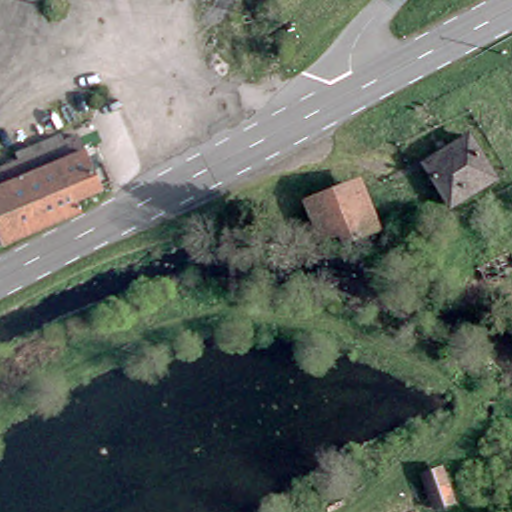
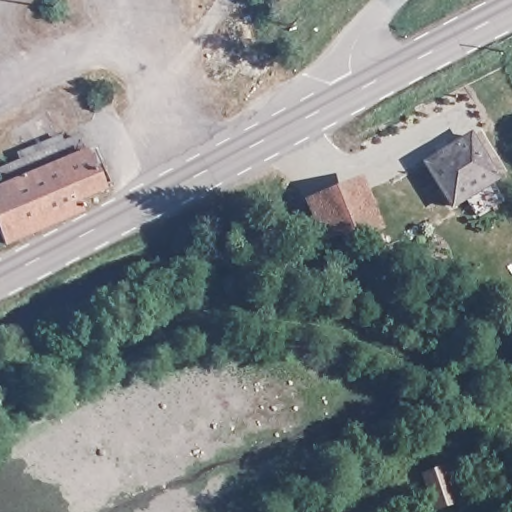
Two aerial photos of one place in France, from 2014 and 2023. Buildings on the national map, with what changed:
unchanged [(0,189),(0,179),(18,169),(15,161),(53,140),(57,148),(74,138),(100,189),(77,203),(82,212),(9,254),(0,236),(0,199),(4,197),(0,189)]
unchanged [(472,139),(497,182),(450,211),(425,168),(472,139)]
unchanged [(326,198),(332,214),(366,199),(380,233),(343,248),(339,239),(322,246),(306,207),(326,198)]
unchanged [(420,483),(440,475),(443,485),(452,509),(443,512),(431,512),(424,492),(420,483)]
unchanged [(423,512),(396,512),(417,501),(423,512)]

